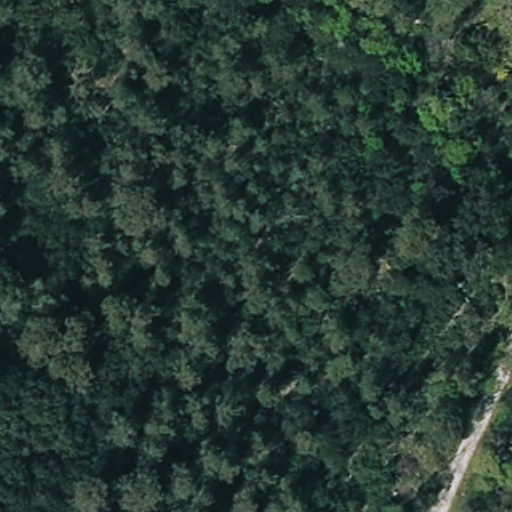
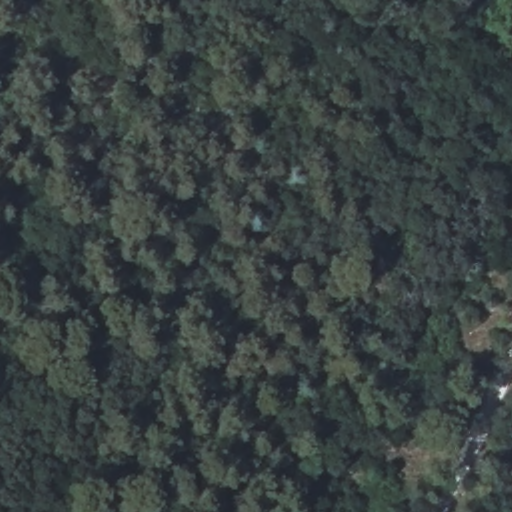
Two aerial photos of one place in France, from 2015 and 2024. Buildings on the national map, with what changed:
[]

